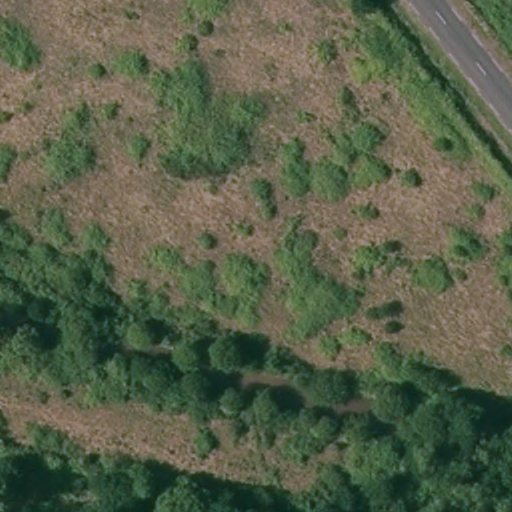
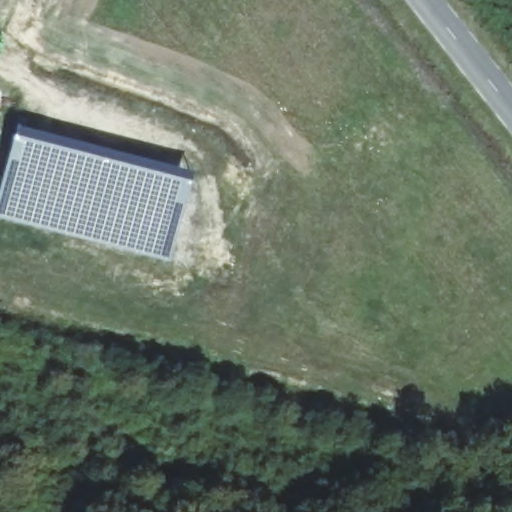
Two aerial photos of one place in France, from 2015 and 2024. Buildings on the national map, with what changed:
new [(169,262),(0,219),(0,182),(15,125),(186,170),(169,262)]
demolished [(1,462),(0,469),(0,461),(1,462)]

